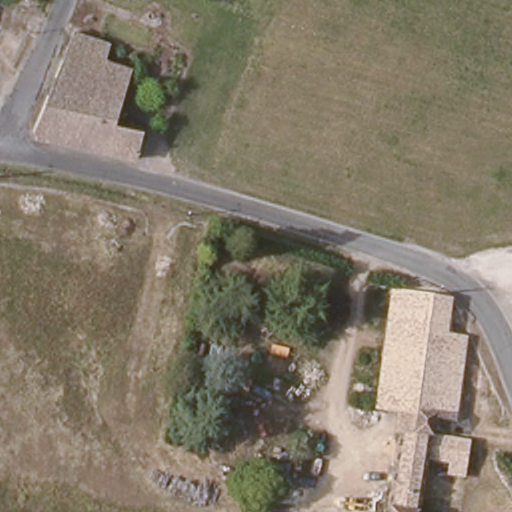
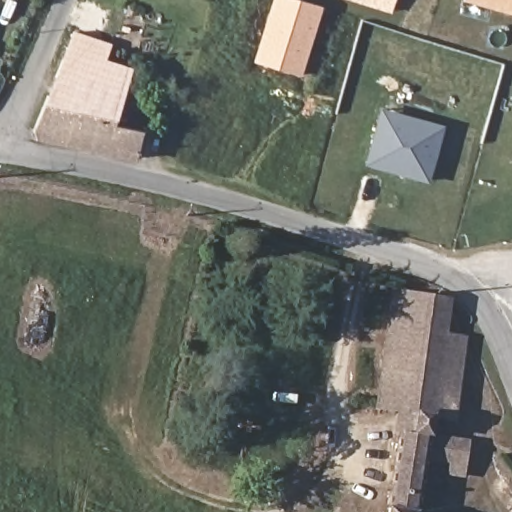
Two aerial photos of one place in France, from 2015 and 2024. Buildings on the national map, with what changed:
new [(254,61),(273,0),(306,0),(323,6),(302,76),(254,61)]
new [(395,0),(392,12),(352,0),(395,0)]
new [(464,1),(464,0),(512,0),(512,14),(464,1)]
unchanged [(35,137),(34,125),(72,33),(110,45),(105,61),(132,70),(114,121),(141,130),(135,162),(35,137)]
new [(366,165),(380,108),(445,125),(430,183),(366,165)]
unchanged [(394,290),(453,299),(449,338),(388,328),(394,290)]
unchanged [(445,389),(456,391),(452,415),(441,414),(440,424),(407,418),(377,414),(388,328),(449,338),(445,389)]
unchanged [(403,447),(407,418),(440,424),(451,425),(449,448),(447,471),(433,469),(427,512),(395,512),(403,447)]

